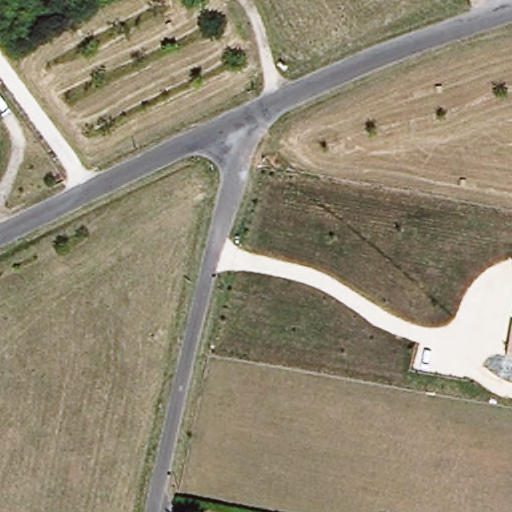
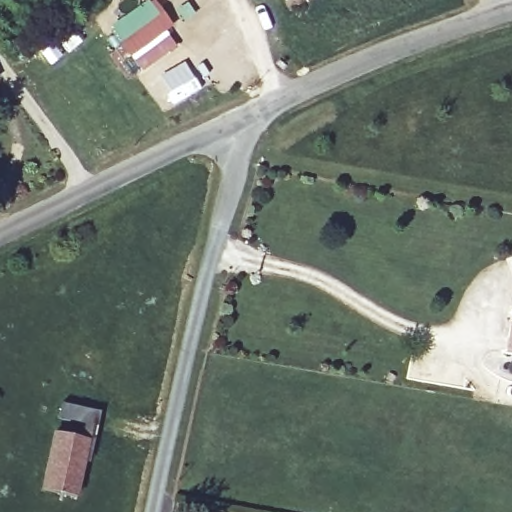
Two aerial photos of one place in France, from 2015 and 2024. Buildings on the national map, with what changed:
new [(154,1),(172,27),(129,58),(139,72),(126,81),(109,56),(122,47),(112,32),(154,1)]
unchanged [(510,319),(512,319),(512,357),(504,356),(510,319)]
new [(80,439),(85,425),(59,419),(62,405),(99,414),(89,464),(85,463),(77,498),(41,490),(52,433),(80,439)]

